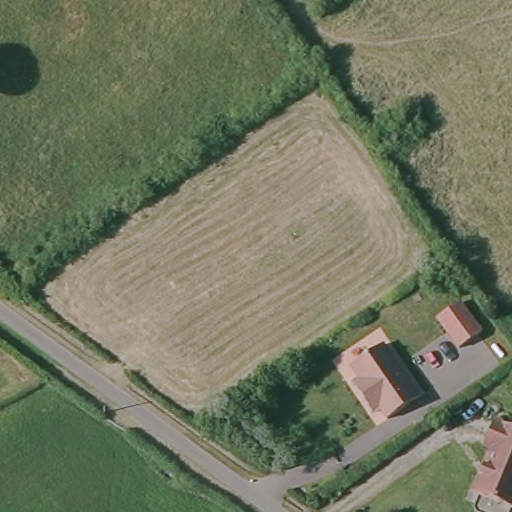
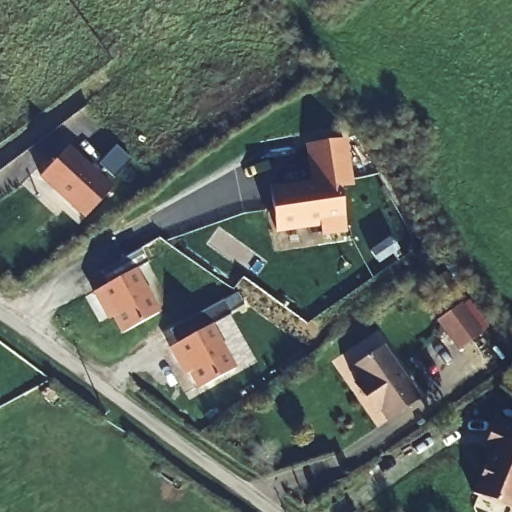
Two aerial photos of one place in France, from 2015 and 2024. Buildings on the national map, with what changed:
new [(346,137),(354,185),(340,187),(347,231),(320,236),(319,226),(275,234),(268,186),(310,180),(306,144),(346,137)]
new [(112,187),(83,218),(39,178),(69,145),(112,187)]
new [(148,262),(137,269),(160,312),(121,335),(112,318),(107,320),(92,292),(110,282),(102,270),(140,250),(148,262)]
demolished [(460,283),(482,313),(460,329),(438,299),(460,283)]
new [(231,314),(214,323),(235,367),(197,389),(190,374),(185,377),(168,347),(177,343),(170,328),(222,301),(231,314)]
new [(461,301),(482,332),(457,350),(437,320),(461,301)]
unchanged [(416,395),(383,418),(365,393),(362,396),(350,380),(355,377),(347,366),(379,341),(416,395)]
unchanged [(512,512),(485,512),(479,509),(477,503),(482,492),(477,490),(493,446),(486,443),(496,413),(512,420),(512,512)]

